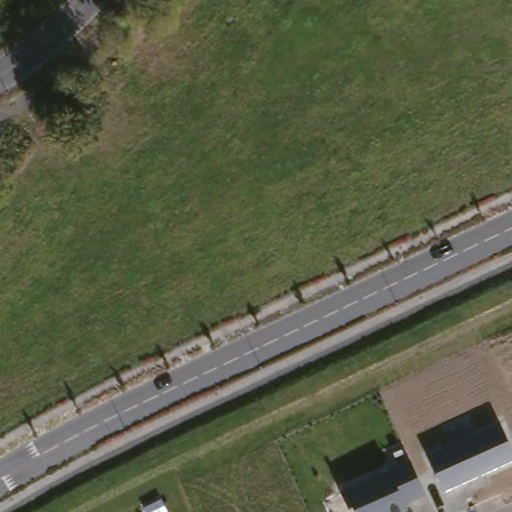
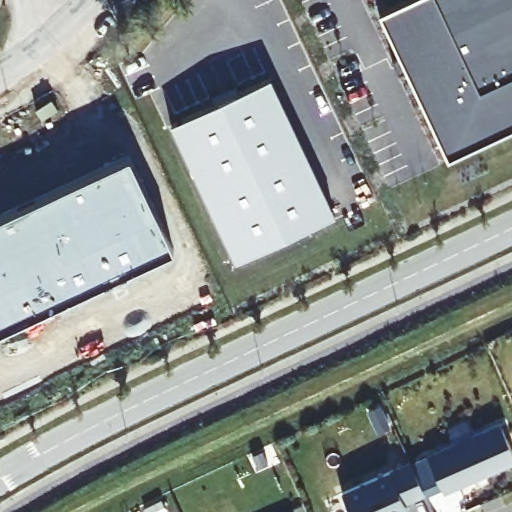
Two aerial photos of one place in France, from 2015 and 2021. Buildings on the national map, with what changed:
new [(378,15),(411,0),(512,0),(512,131),(478,147),(448,161),(442,150),(378,15)]
new [(209,95),(236,82),(240,91),(270,77),(335,215),(236,261),(171,124),(214,104),(209,95)]
unchanged [(499,422),(512,451),(512,461),(443,491),(428,456),(499,422)]
unchanged [(341,491),(410,461),(425,495),(405,502),(408,510),(403,512),(351,512),(341,491)]

